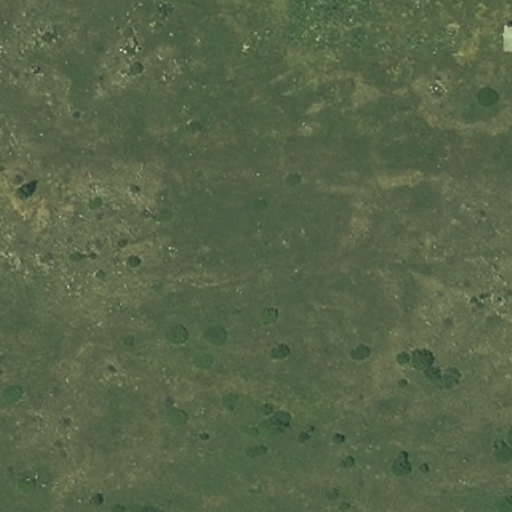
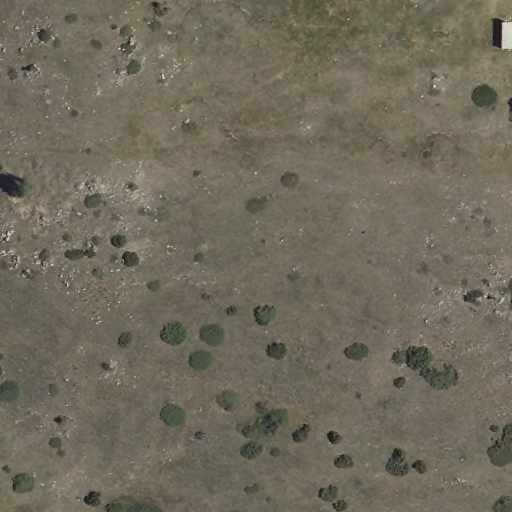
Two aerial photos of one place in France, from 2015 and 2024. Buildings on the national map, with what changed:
unchanged [(502,51),(503,26),(512,26),(512,51),(502,51)]

